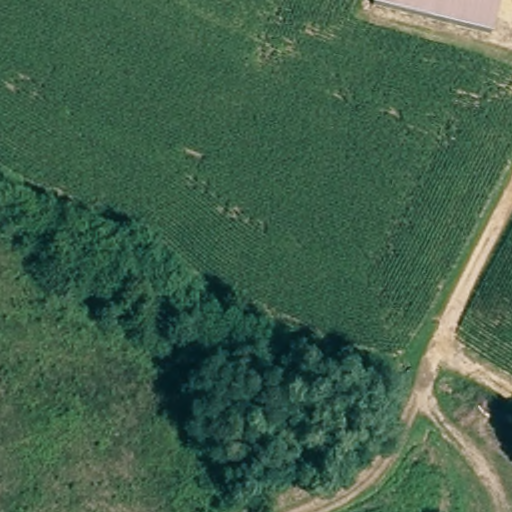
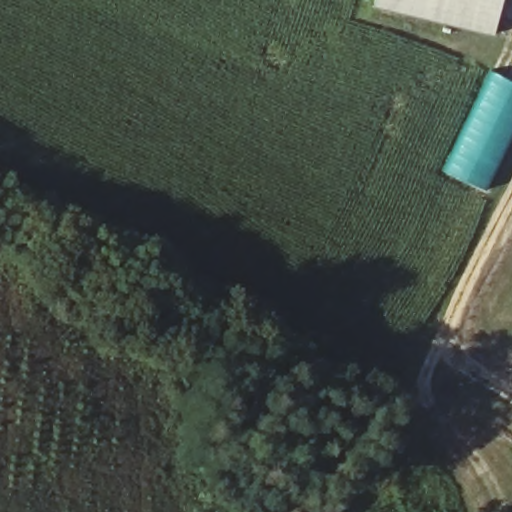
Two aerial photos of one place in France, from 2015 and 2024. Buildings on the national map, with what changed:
unchanged [(485,37),(368,3),(369,0),(494,0),(485,37)]
new [(443,170),(491,71),(512,81),(512,132),(483,189),(443,170)]

